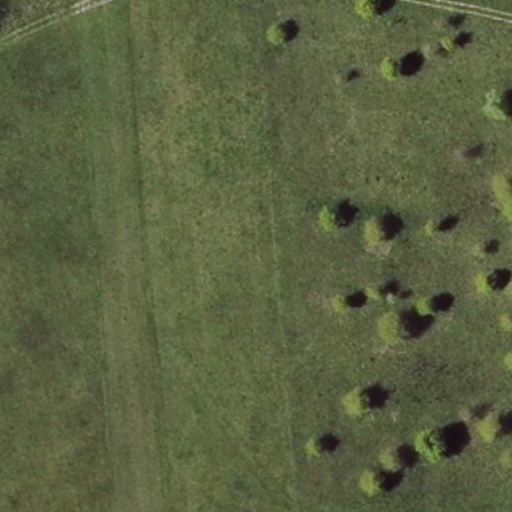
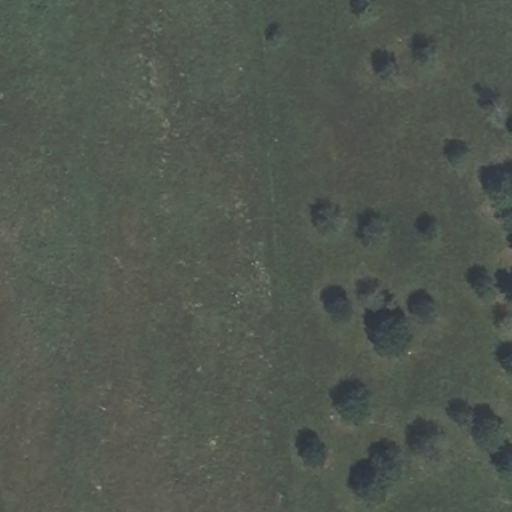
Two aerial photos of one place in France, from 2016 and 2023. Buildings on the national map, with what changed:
[]

